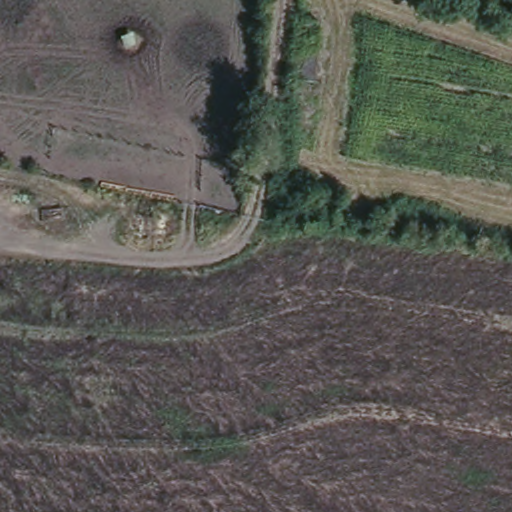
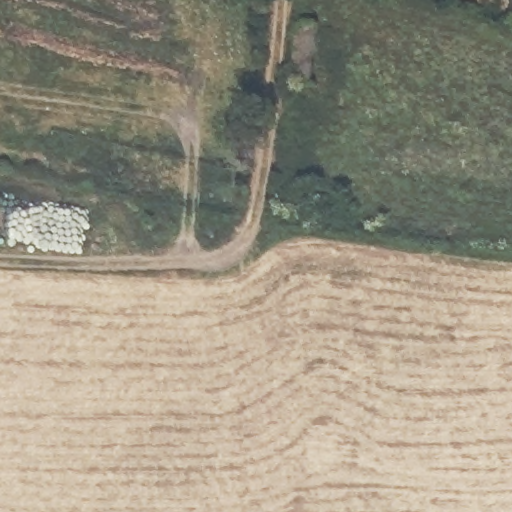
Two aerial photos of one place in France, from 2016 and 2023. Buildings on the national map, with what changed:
unchanged [(322,21),(317,83),(293,81),(299,18),(322,21)]

